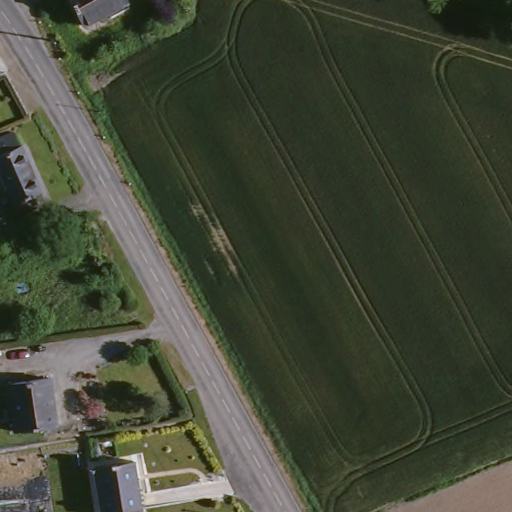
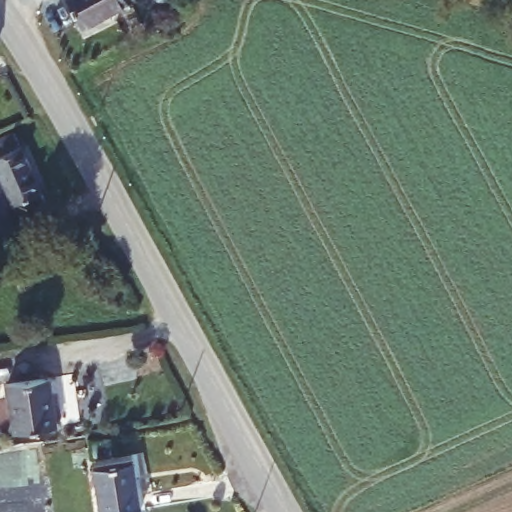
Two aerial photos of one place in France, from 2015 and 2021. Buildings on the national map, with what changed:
unchanged [(62,0),(120,0),(123,5),(81,30),(62,0)]
unchanged [(16,133),(52,207),(25,220),(0,168),(0,140),(16,133)]
unchanged [(3,390),(45,383),(52,430),(9,436),(3,390)]
unchanged [(131,469),(134,512),(94,512),(91,473),(131,469)]

